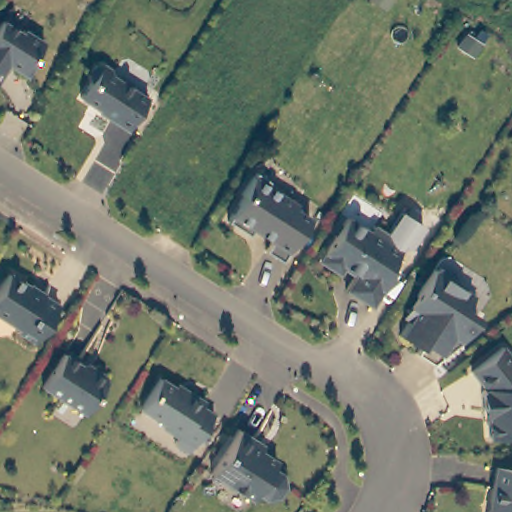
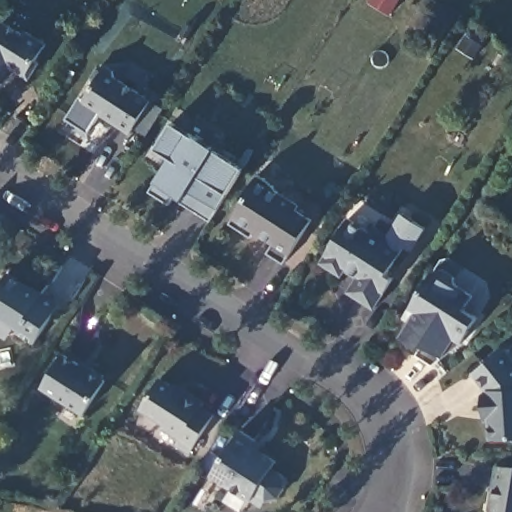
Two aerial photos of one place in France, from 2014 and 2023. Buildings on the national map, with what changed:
unchanged [(21,33),(24,29),(47,44),(37,61),(34,59),(24,74),(4,62),(0,68),(0,23),(1,20),(21,33)]
unchanged [(0,78),(0,68),(4,70),(0,78)]
unchanged [(129,134),(99,116),(100,114),(81,102),(92,85),(90,79),(96,70),(103,69),(111,74),(113,79),(149,102),(129,134)]
new [(215,222),(184,203),(188,198),(181,194),(174,205),(154,193),(175,159),(160,150),(176,123),(248,168),(215,222)]
unchanged [(273,193),(293,206),(290,210),(306,220),(279,264),(262,253),(268,243),(250,231),(246,238),(224,224),(240,199),(238,197),(252,175),(273,193)]
unchanged [(404,245),(387,273),(393,277),(374,308),(348,291),(358,274),(347,267),(341,276),(320,262),(348,218),(370,232),(374,226),(404,245)]
unchanged [(421,300),(418,289),(433,264),(442,262),(454,270),(456,279),(473,289),(465,302),(478,311),(463,336),(434,359),(418,348),(421,343),(402,331),(421,300)]
unchanged [(58,304),(34,342),(17,331),(19,327),(0,315),(0,283),(7,272),(58,304)]
unchanged [(480,413),(479,397),(483,394),(469,376),(499,351),(512,362),(512,440),(496,441),(494,423),(481,424),(480,413)]
unchanged [(89,372),(94,370),(105,377),(106,383),(85,417),(43,390),(64,356),(89,372)]
unchanged [(181,396),(184,393),(200,403),(198,408),(210,416),(186,455),(172,446),(177,441),(160,430),(162,427),(137,411),(156,381),(181,396)]
unchanged [(257,441),(254,446),(278,462),(274,469),(284,475),(287,488),(280,498),(269,500),(258,494),(254,501),(214,475),(241,431),(257,441)]
unchanged [(512,465),(512,512),(483,512),(484,506),(486,498),(494,461),(512,465)]

